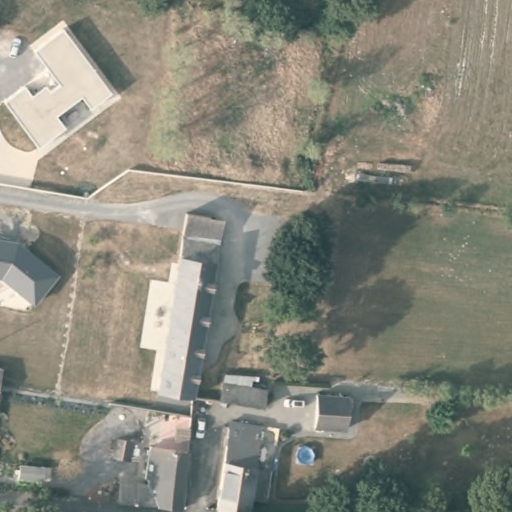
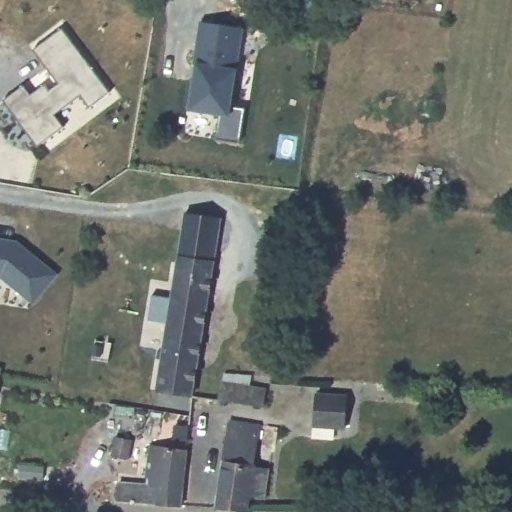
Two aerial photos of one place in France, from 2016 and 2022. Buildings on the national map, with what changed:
new [(236,68),(230,106),(244,108),(238,142),(214,138),(217,115),(186,109),(195,61),(191,61),(197,21),(243,28),(236,68)]
unchanged [(63,27),(113,93),(90,111),(80,98),(56,116),(66,129),(36,151),(2,101),(25,84),(32,95),(45,86),(49,90),(57,84),(30,51),(63,27)]
unchanged [(186,214),(220,220),(194,394),(125,385),(130,368),(141,369),(142,366),(148,366),(149,370),(160,372),(184,230),(186,214)]
unchanged [(20,241),(58,274),(34,305),(1,279),(0,279),(0,238),(20,241)]
unchanged [(2,366),(0,381),(0,366),(2,366)]
unchanged [(260,388),(258,403),(221,398),(225,382),(260,388)]
unchanged [(348,396),(346,424),(315,423),(316,395),(348,396)]
unchanged [(268,495),(249,495),(246,509),(216,507),(228,435),(240,436),(245,420),(260,420),(254,462),(271,464),(268,495)]
unchanged [(120,477),(143,478),(149,443),(156,440),(188,444),(182,501),(115,495),(120,477)]

